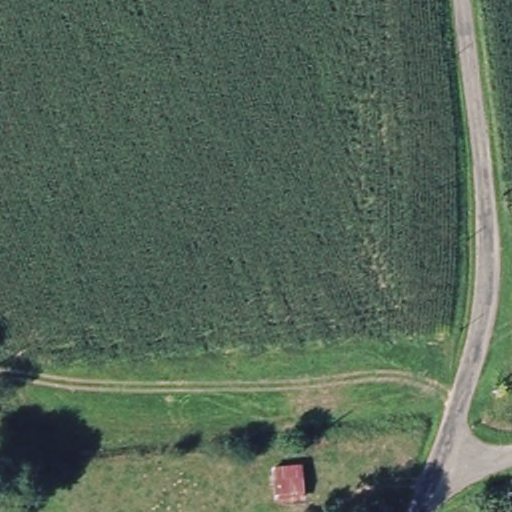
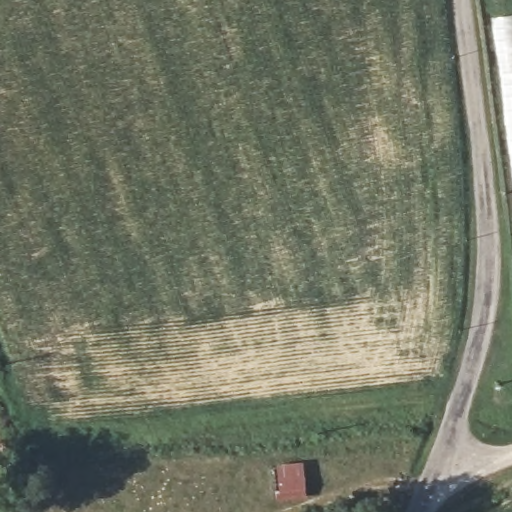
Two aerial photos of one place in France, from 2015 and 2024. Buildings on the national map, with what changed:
new [(512,14),(512,154),(494,17),(512,14)]
unchanged [(304,466),(306,504),(275,505),(272,469),(304,466)]

